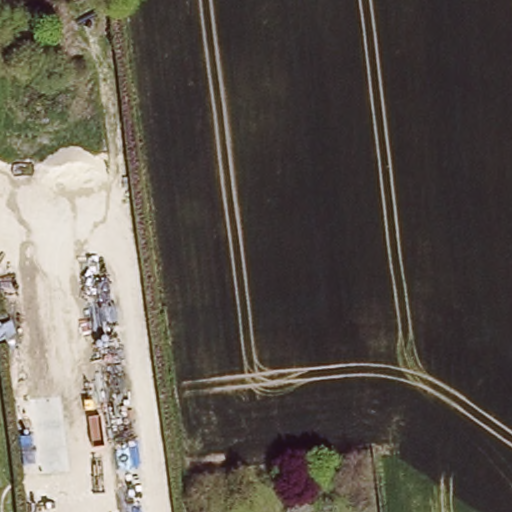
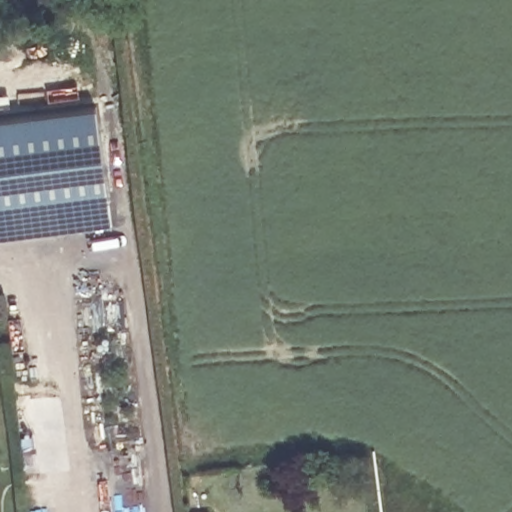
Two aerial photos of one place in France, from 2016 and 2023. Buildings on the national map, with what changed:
new [(110,222),(0,237),(0,118),(94,105),(110,222)]
demolished [(23,339),(0,343),(0,317),(14,316),(23,339)]

